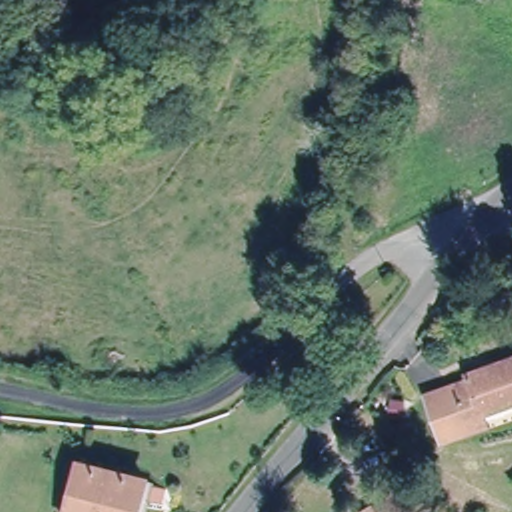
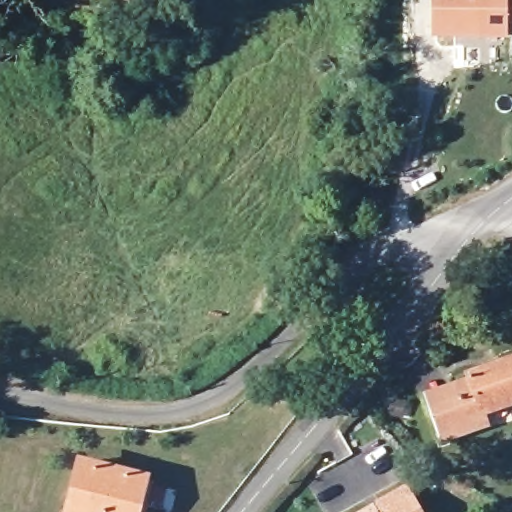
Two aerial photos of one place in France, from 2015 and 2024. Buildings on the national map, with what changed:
new [(507,39),(431,38),(431,0),(512,0),(512,22),(508,22),(507,39)]
unchanged [(465,375),(512,358),(512,404),(482,416),(487,427),(441,445),(427,409),(423,396),(451,385),(467,379),(465,375)]
unchanged [(143,479),(134,512),(67,512),(80,462),(143,479)]
new [(374,507),(374,504),(408,485),(422,512),(377,512),(374,507)]
unchanged [(368,511),(374,507),(377,512),(366,512),(368,511)]

